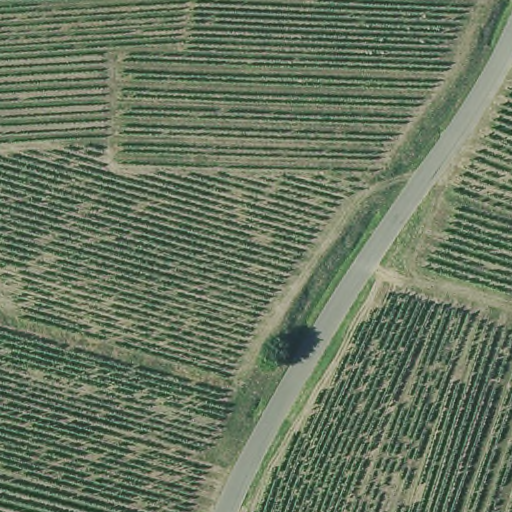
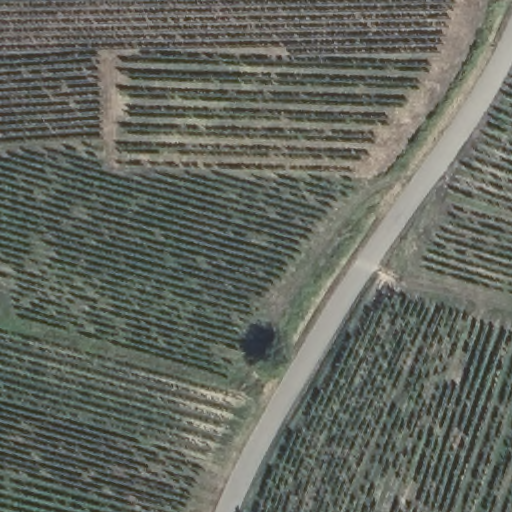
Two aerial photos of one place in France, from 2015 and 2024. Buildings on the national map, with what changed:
[]

